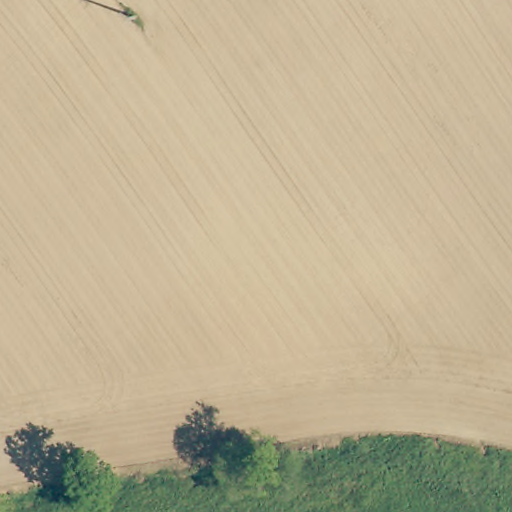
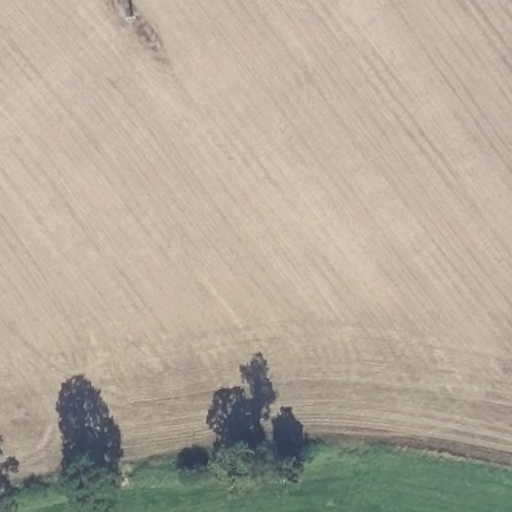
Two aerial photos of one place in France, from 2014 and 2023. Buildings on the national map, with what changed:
[]

